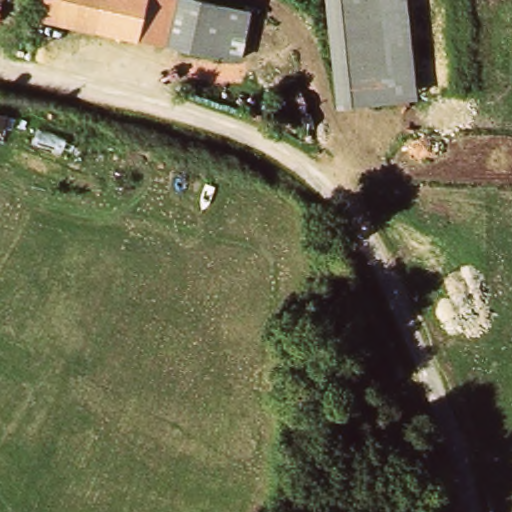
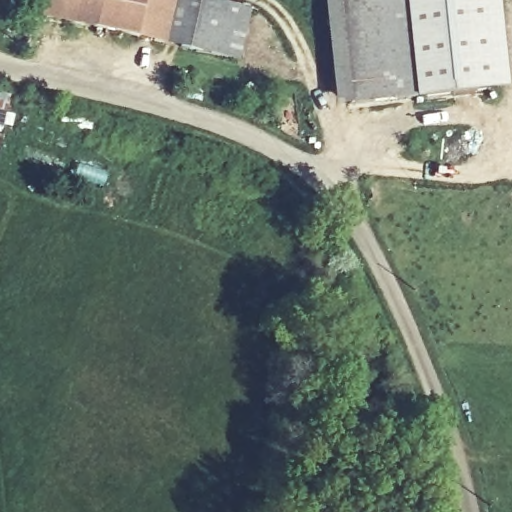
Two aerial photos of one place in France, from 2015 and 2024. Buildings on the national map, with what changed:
unchanged [(96,28),(44,18),(47,0),(102,0),(96,28)]
unchanged [(182,47),(96,28),(102,0),(192,0),(182,47)]
unchanged [(256,8),(246,57),(182,47),(192,0),(210,0),(256,8)]
unchanged [(327,0),(411,0),(421,100),(339,106),(327,0)]
new [(411,0),(499,0),(508,89),(421,100),(411,0)]

